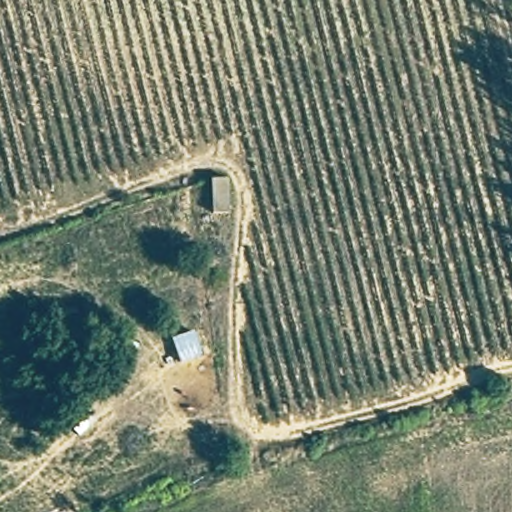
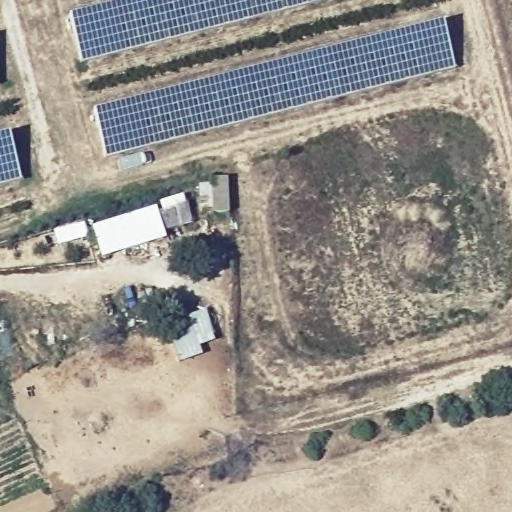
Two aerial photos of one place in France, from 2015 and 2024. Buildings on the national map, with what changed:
new [(69,16),(134,0),(329,0),(81,63),(69,16)]
new [(454,69),(105,159),(92,112),(442,23),(454,69)]
new [(0,136),(8,134),(20,180),(0,185),(0,136)]
unchanged [(231,178),(231,214),(212,215),(210,179),(231,178)]
new [(157,212),(162,210),(160,203),(184,195),(192,224),(163,232),(166,239),(102,259),(92,227),(156,208),(157,212)]

